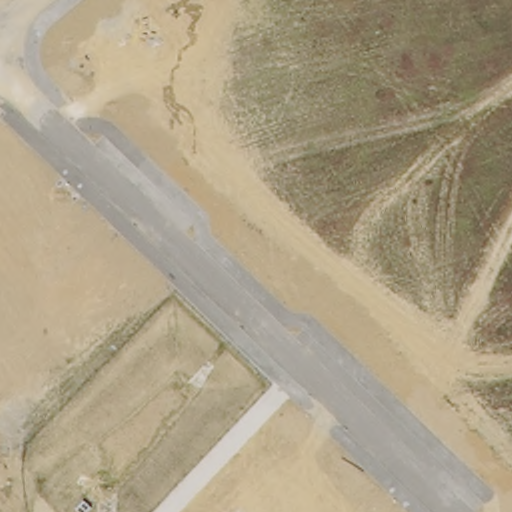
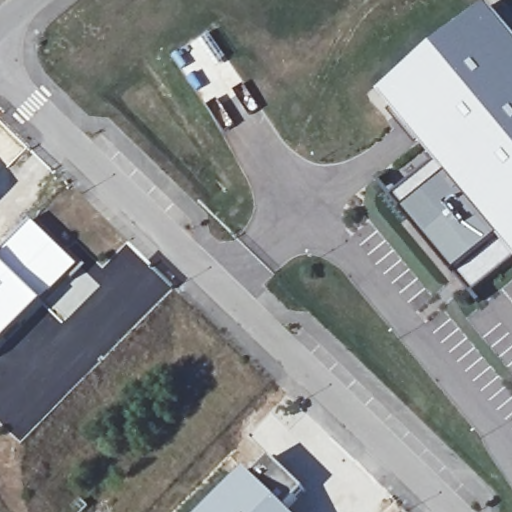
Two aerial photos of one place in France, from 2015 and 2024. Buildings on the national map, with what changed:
new [(500,240),(455,276),(404,214),(393,199),(436,164),(380,97),(443,43),(491,6),(512,31),(512,256),(500,240)]
new [(33,220),(82,266),(0,348),(0,254),(33,220)]
new [(512,256),(512,260),(473,294),(455,276),(500,240),(512,256)]
new [(86,271),(101,286),(64,325),(48,310),(86,271)]
new [(271,457),(307,491),(289,511),(252,475),(271,457)]
new [(210,507),(246,470),(252,475),(289,511),(290,512),(205,512),(210,507)]

